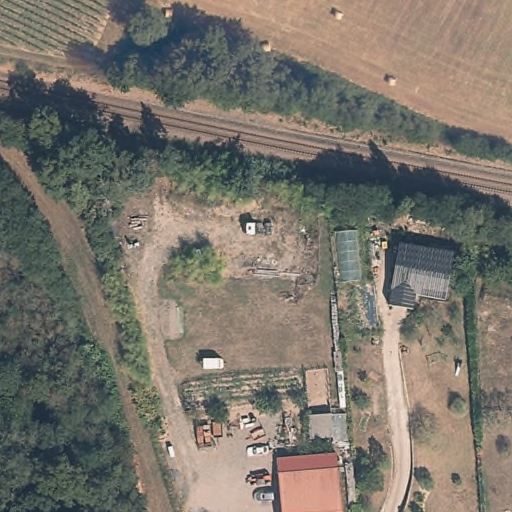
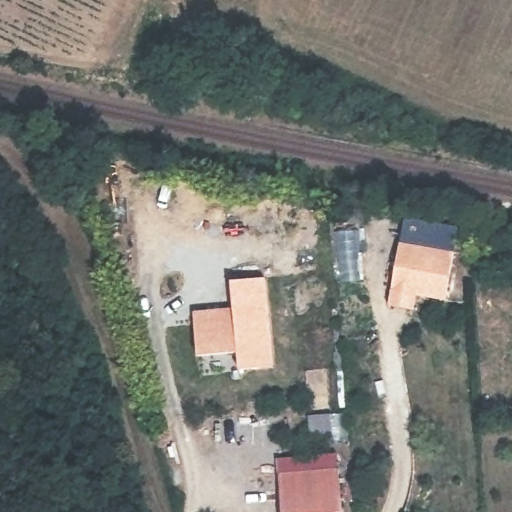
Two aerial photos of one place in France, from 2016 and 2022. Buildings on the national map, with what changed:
unchanged [(452,252),(443,300),(416,296),(413,309),(386,305),(401,242),(452,252)]
new [(232,308),(230,281),(266,278),(274,368),(239,371),(237,353),(197,357),(192,312),(232,308)]
unchanged [(278,474),(338,469),(342,512),(282,512),(278,474)]

